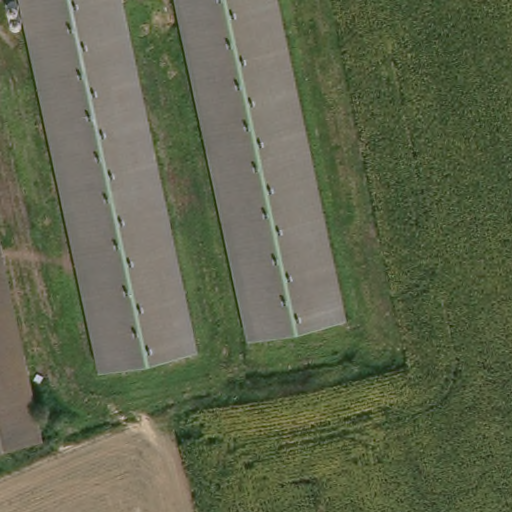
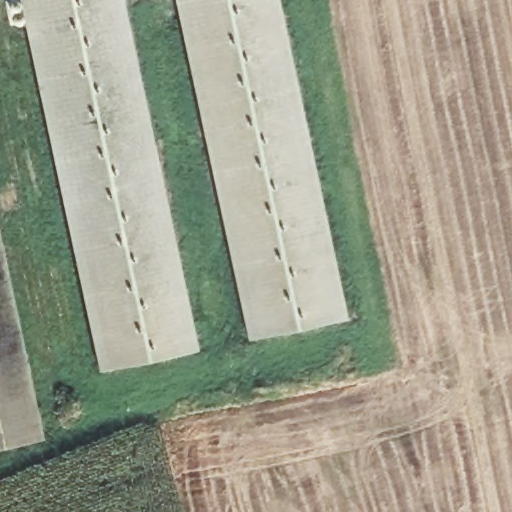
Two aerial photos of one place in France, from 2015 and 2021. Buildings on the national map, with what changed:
unchanged [(139,0),(134,1),(209,353),(109,374),(31,0),(139,0)]
unchanged [(256,338),(183,0),(290,0),(357,320),(256,338)]
unchanged [(0,448),(0,185),(56,438),(0,448)]

